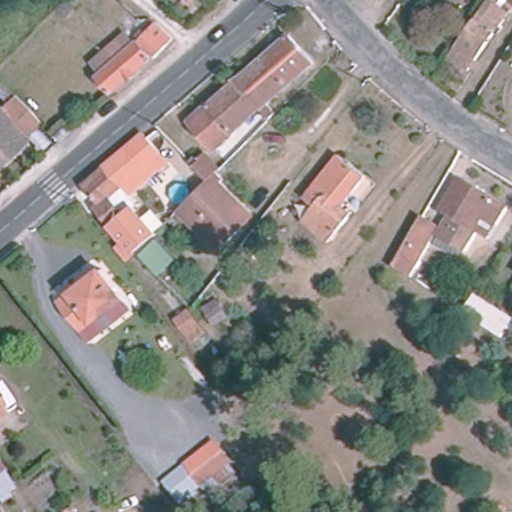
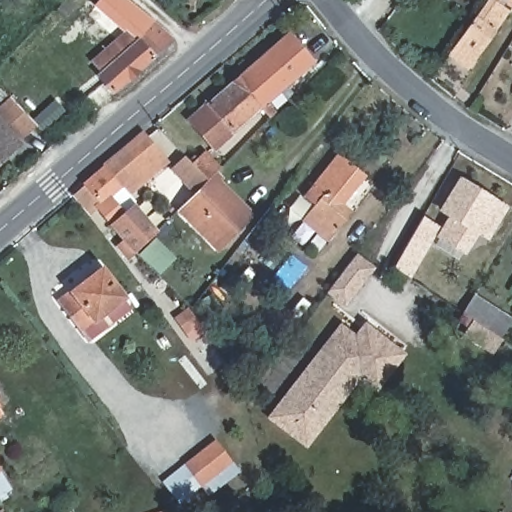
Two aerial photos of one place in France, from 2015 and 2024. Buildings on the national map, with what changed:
unchanged [(456,44),(466,30),(487,0),(497,0),(509,10),(476,57),(468,69),(449,55),(456,44)]
unchanged [(133,79),(121,89),(119,86),(103,101),(89,85),(119,59),(101,40),(109,32),(120,21),(138,40),(140,39),(144,42),(149,37),(161,49),(156,54),(131,76),(133,79)]
unchanged [(284,35),(308,62),(262,102),(271,112),(265,119),(256,109),(232,82),(284,35)]
unchanged [(256,109),(209,150),(184,122),(232,82),(256,109)]
unchanged [(34,130),(0,161),(0,106),(5,101),(23,119),(34,130)]
unchanged [(144,135),(166,162),(125,199),(155,234),(146,244),(138,252),(96,208),(103,202),(87,185),(144,135)]
unchanged [(175,211),(205,181),(204,180),(184,161),(189,156),(194,160),(200,155),(215,169),(212,172),(218,177),(214,181),(224,191),(249,215),(239,224),(214,250),(175,211)]
unchanged [(342,206),(352,214),(330,242),(303,221),(308,215),(298,207),(338,155),(364,176),(342,206)]
unchanged [(476,232),(464,251),(439,236),(452,217),(441,210),(459,181),(505,210),(497,224),(487,240),(476,232)]
unchanged [(439,229),(410,278),(394,267),(422,219),(439,229)]
unchanged [(156,239),(174,259),(159,272),(141,252),(156,239)]
new [(347,306),(328,292),(357,254),(377,268),(347,306)]
unchanged [(59,302),(100,270),(132,308),(91,341),(59,302)]
unchanged [(494,333),(464,312),(474,295),(512,321),(501,337),(494,333)]
unchanged [(190,296),(195,300),(190,305),(186,301),(190,296)]
new [(339,324),(354,334),(364,322),(407,353),(378,392),(362,380),(307,448),(268,418),(339,324)]
unchanged [(178,504),(158,481),(214,440),(231,463),(178,504)]
unchanged [(0,476),(5,485),(0,488),(0,476)]
unchanged [(171,510),(172,512),(164,512),(171,510)]

